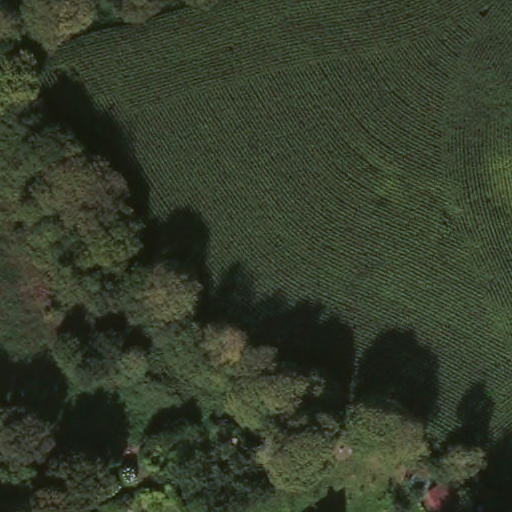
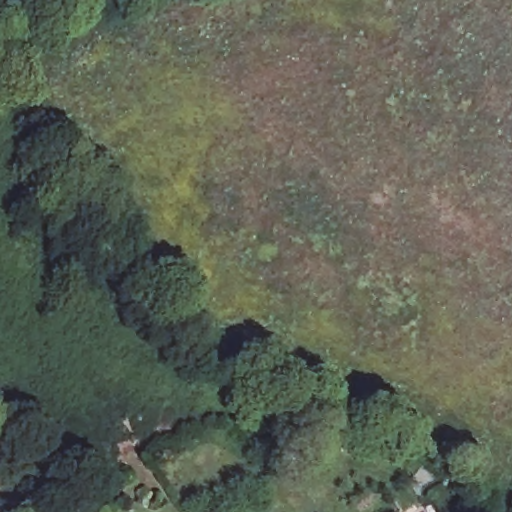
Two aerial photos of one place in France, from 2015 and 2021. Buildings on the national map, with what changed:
unchanged [(425,504),(447,489),(448,488),(452,486),(457,493),(459,496),(467,507),(460,512),(431,512),(425,504)]

